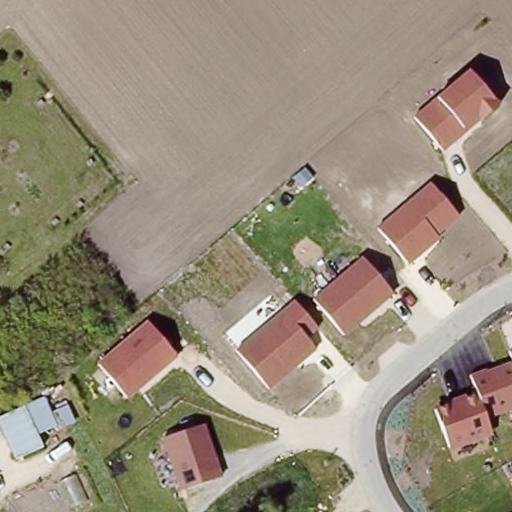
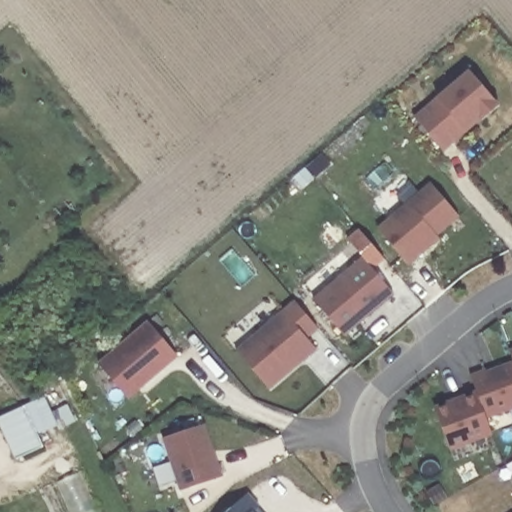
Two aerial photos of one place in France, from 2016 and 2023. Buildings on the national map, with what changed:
unchanged [(445,151),(415,117),(468,72),(498,105),(445,151)]
unchanged [(409,265),(378,228),(430,184),(459,217),(437,236),(439,239),(409,265)]
unchanged [(346,336),(315,299),(362,258),(393,294),(346,336)]
unchanged [(270,389),(236,351),(295,302),(319,330),(307,339),(317,350),(270,389)]
unchanged [(178,357),(129,399),(98,363),(147,322),(178,357)]
unchanged [(512,350),(512,357),(510,351),(512,350)]
unchanged [(436,407),(477,391),(472,376),(512,362),(512,409),(486,417),(492,436),(453,449),(436,407)]
unchanged [(0,432),(0,419),(46,396),(59,426),(38,434),(43,450),(16,462),(0,432)]
unchanged [(204,425),(222,477),(180,491),(162,440),(204,425)]
new [(260,507),(257,510),(259,512),(227,512),(248,494),(260,507)]

